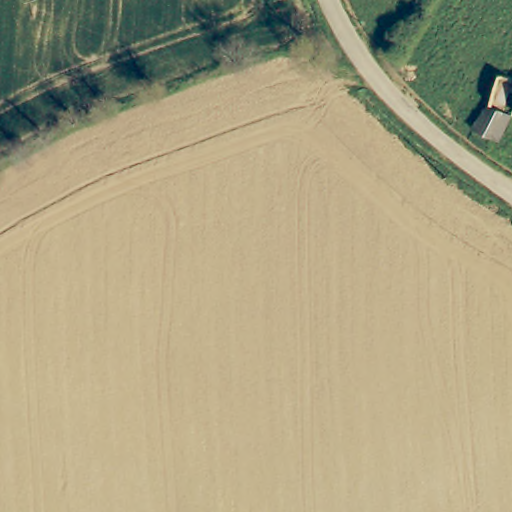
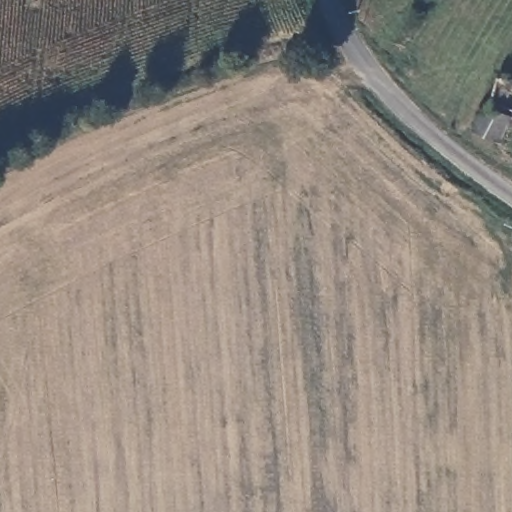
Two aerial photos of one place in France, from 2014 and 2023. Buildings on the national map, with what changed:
unchanged [(512,115),(512,135),(505,147),(482,134),(499,106),(512,115)]

